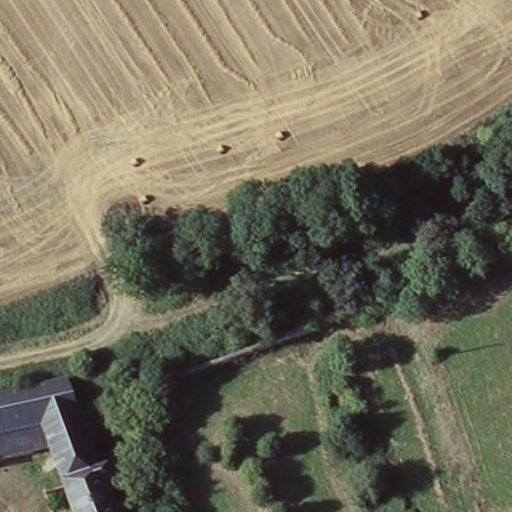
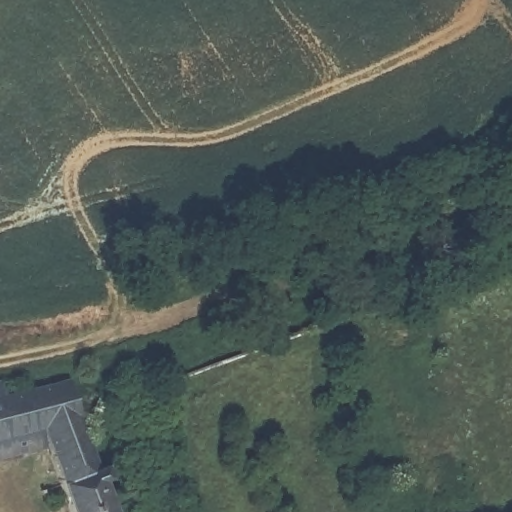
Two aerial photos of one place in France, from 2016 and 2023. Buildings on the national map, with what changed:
unchanged [(32,449),(8,454),(0,457),(0,379),(45,371),(64,420),(87,412),(97,432),(70,441),(87,471),(93,469),(99,480),(92,482),(109,512),(67,512),(32,449)]

